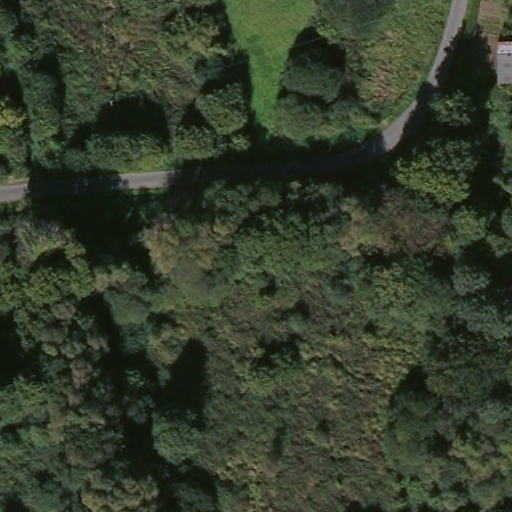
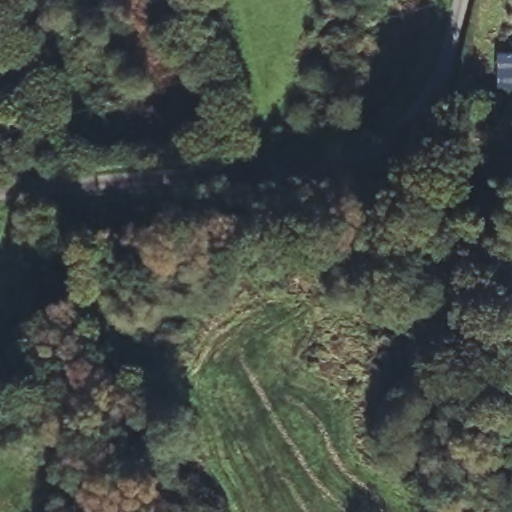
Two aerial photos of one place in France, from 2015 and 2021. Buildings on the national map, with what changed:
unchanged [(497,95),(495,65),(512,64),(512,95),(497,95)]

